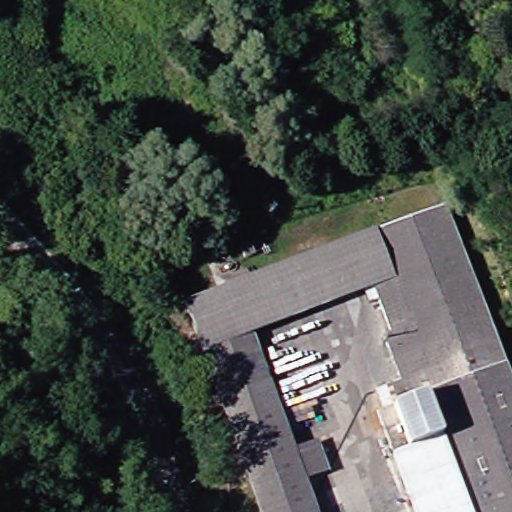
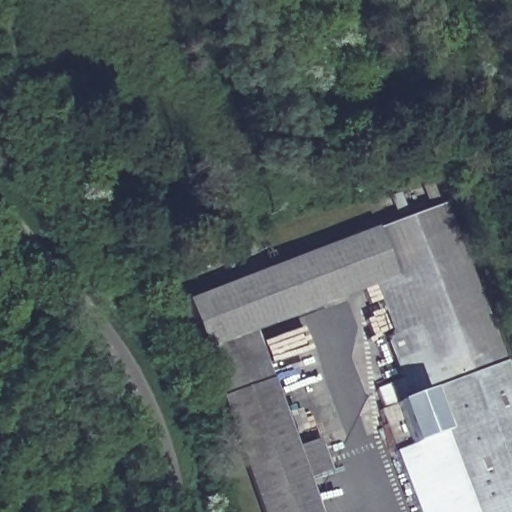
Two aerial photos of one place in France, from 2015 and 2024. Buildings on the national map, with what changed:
unchanged [(401,269),(388,226),(457,201),(512,355),(512,512),(481,512),(402,272),(401,269)]
unchanged [(383,278),(255,322),(248,302),(199,319),(189,294),(388,226),(401,269),(383,278)]
unchanged [(401,405),(391,371),(412,363),(383,278),(401,269),(402,272),(481,512),(423,512),(386,408),(401,405)]
unchanged [(248,302),(255,322),(272,370),(224,386),(199,319),(248,302)]
unchanged [(271,512),(224,386),(272,370),(297,441),(324,434),(330,457),(308,464),(315,487),(324,511),(324,512),(271,512)]

